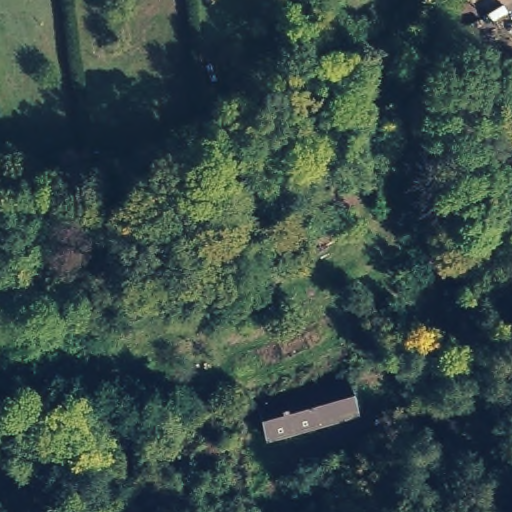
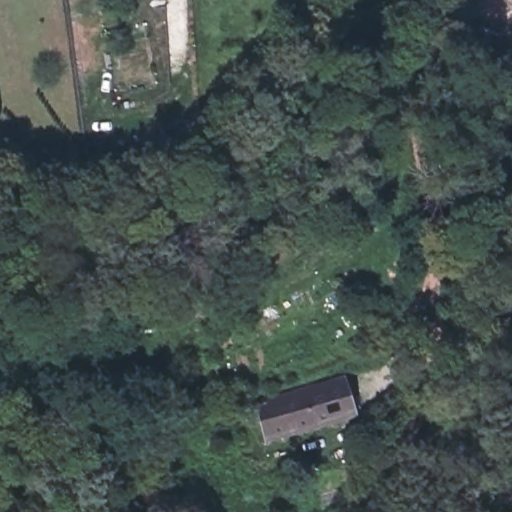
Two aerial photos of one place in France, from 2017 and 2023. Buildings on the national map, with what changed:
unchanged [(337,378),(347,412),(264,439),(253,404),(337,378)]

